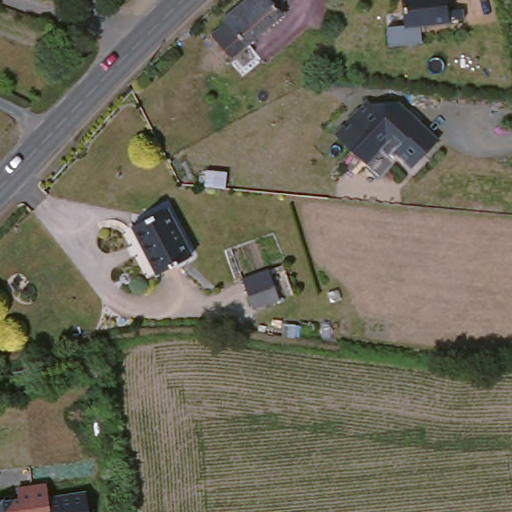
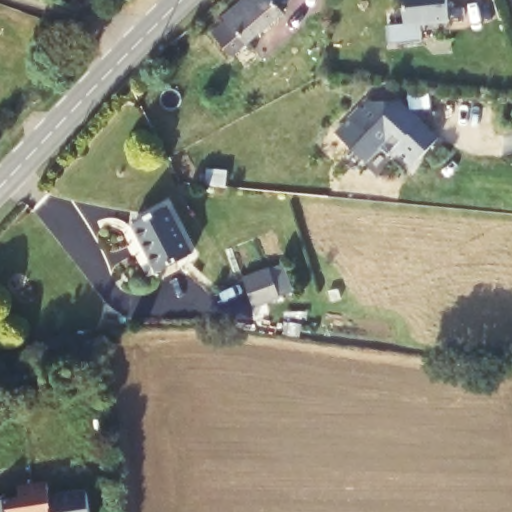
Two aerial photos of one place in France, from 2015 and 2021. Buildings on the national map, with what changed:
unchanged [(211,41),(227,27),(224,24),(251,0),(283,0),(284,1),(276,9),(285,19),(233,65),(211,41)]
unchanged [(470,4),(470,14),(455,15),(455,17),(410,22),(408,0),(453,0),(454,5),(470,4)]
unchanged [(422,164),(388,138),(373,157),(339,130),(375,91),(408,96),(448,130),(422,164)]
unchanged [(195,255),(159,273),(135,226),(170,208),(195,255)]
unchanged [(243,281),(273,271),(285,302),(257,312),(243,281)]
unchanged [(18,478),(51,476),(53,491),(87,487),(91,512),(0,512),(0,494),(18,491),(18,478)]

